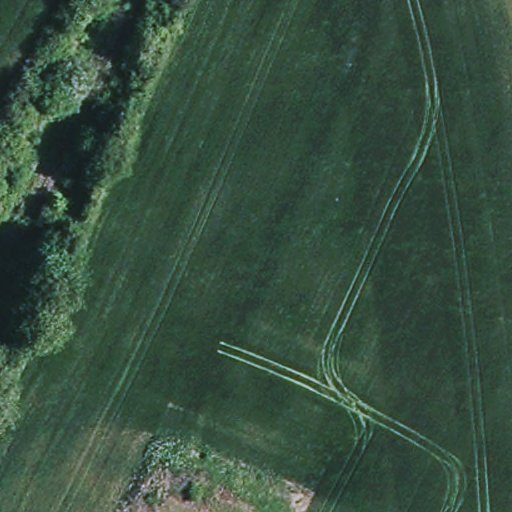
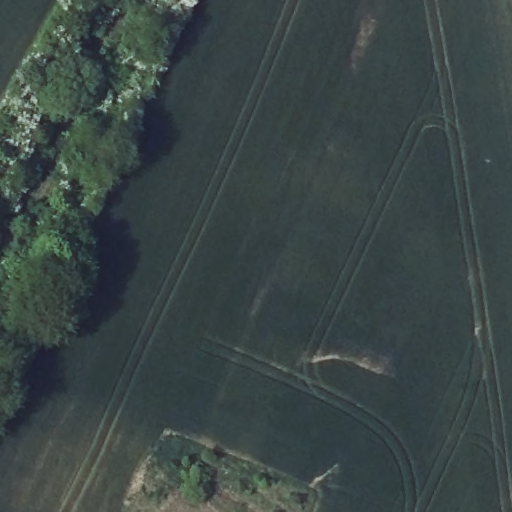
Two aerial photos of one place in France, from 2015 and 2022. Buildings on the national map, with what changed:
unchanged [(169,495),(192,497),(224,507),(229,512),(149,512),(153,500),(169,495)]

